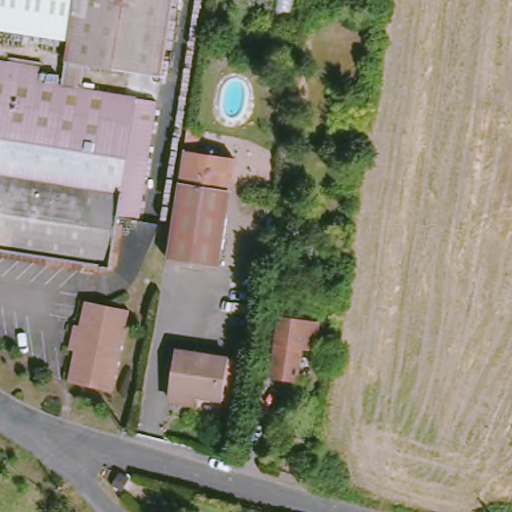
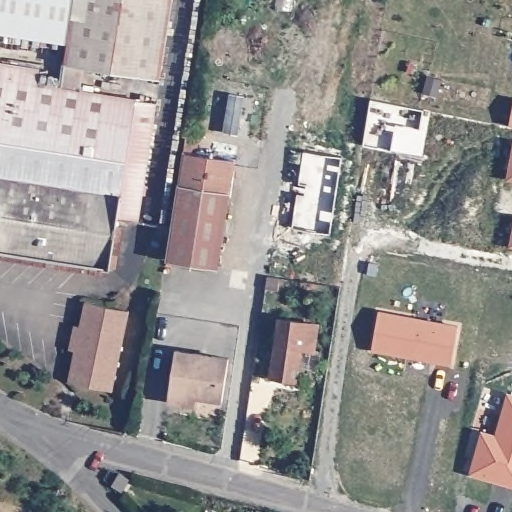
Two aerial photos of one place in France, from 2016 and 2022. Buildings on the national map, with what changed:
unchanged [(105,267),(0,249),(0,0),(167,0),(155,74),(75,61),(72,86),(154,101),(132,214),(114,211),(105,267)]
new [(422,159),(362,149),(370,97),(429,111),(422,159)]
new [(512,104),(512,130),(506,129),(512,104)]
unchanged [(186,153),(187,150),(190,131),(202,134),(199,155),(186,153)]
new [(512,146),(512,184),(505,182),(512,146)]
unchanged [(167,262),(180,186),(186,154),(236,163),(219,271),(167,262)]
new [(331,238),(290,229),(302,154),(342,159),(331,238)]
new [(512,223),(512,250),(505,249),(512,223)]
unchanged [(69,384),(75,352),(67,351),(72,327),(81,328),(87,304),(128,312),(111,394),(69,384)]
new [(452,372),(370,354),(377,311),(457,327),(452,372)]
unchanged [(269,366),(277,316),(317,321),(314,343),(300,342),(295,382),(279,380),(267,378),(269,366)]
unchanged [(202,398),(200,410),(175,405),(185,352),(223,356),(215,400),(202,398)]
new [(482,431),(495,437),(507,395),(512,396),(512,492),(467,478),(482,431)]

